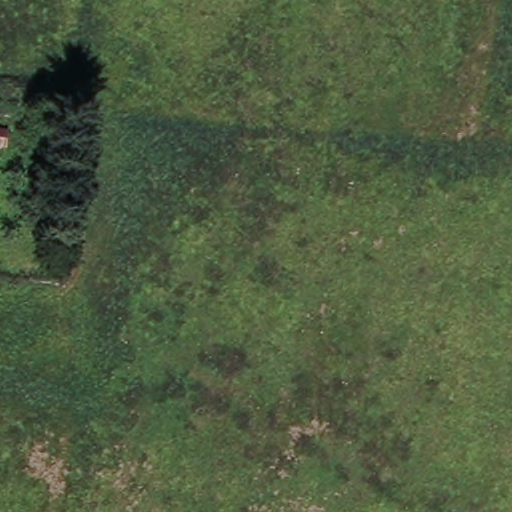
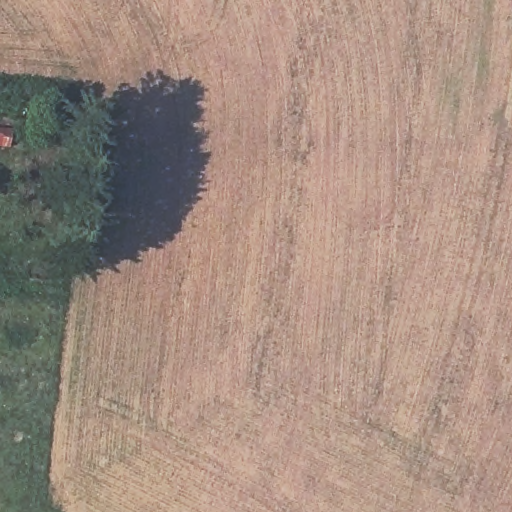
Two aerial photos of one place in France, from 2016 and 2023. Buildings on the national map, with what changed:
unchanged [(9,149),(0,148),(0,129),(10,131),(9,149)]

